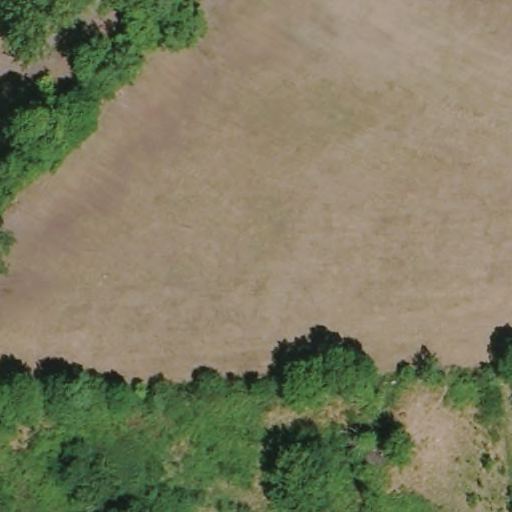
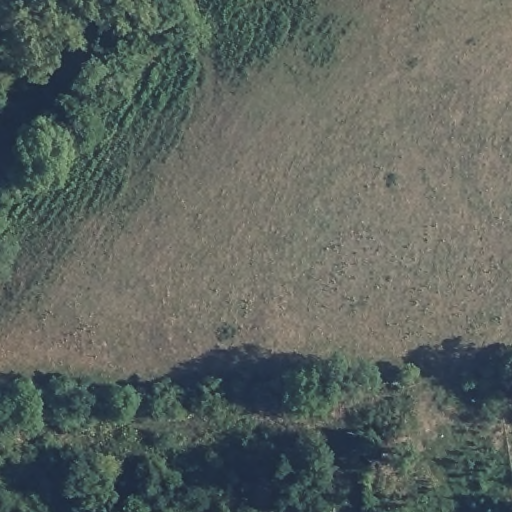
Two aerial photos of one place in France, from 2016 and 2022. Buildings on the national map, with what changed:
[]

